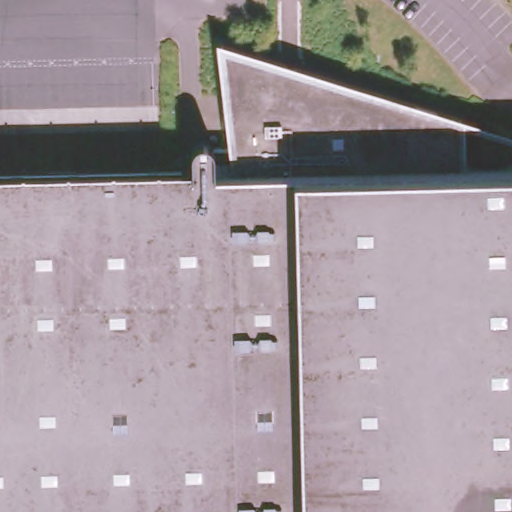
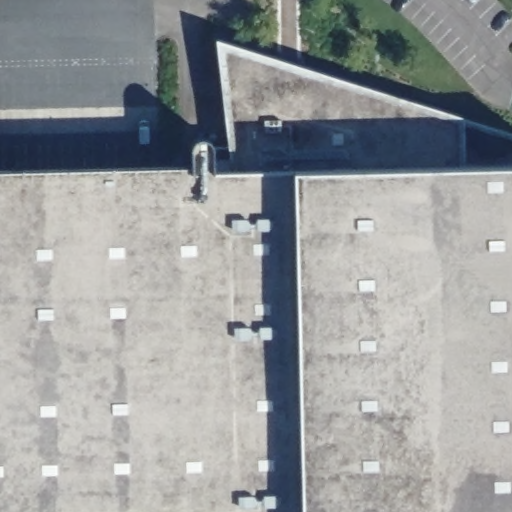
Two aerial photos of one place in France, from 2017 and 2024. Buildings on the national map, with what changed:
unchanged [(185,136),(185,135),(185,134),(185,133),(185,132),(185,131),(186,131),(186,130),(187,130),(187,129),(188,128),(188,127),(189,127),(190,127),(190,126),(191,126),(192,125),(193,125),(194,125),(195,125),(196,125),(197,125),(198,125),(199,125),(200,125),(200,126),(201,126),(202,126),(202,127),(203,127),(204,128),(205,129),(205,130),(206,130),(206,131),(206,132),(207,133),(207,134),(207,135),(226,135),(216,34),(455,108),(456,153),(512,152),(512,512),(0,512),(0,163),(185,159),(185,136)]

